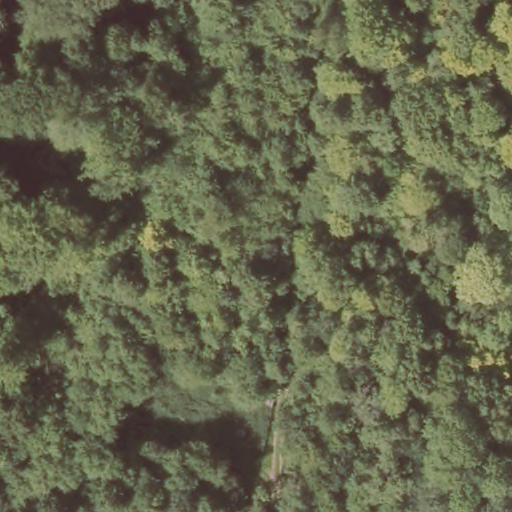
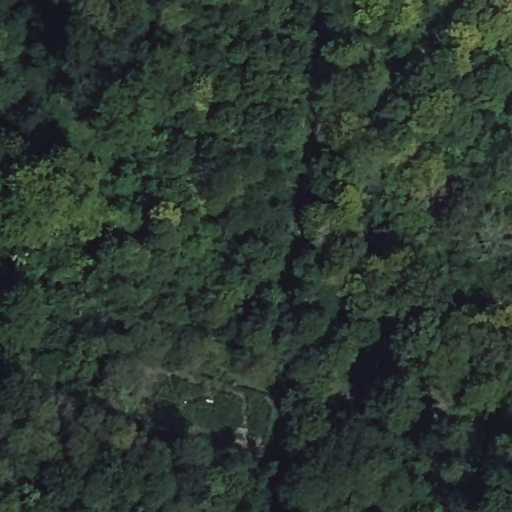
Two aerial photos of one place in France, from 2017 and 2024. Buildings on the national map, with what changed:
[]

